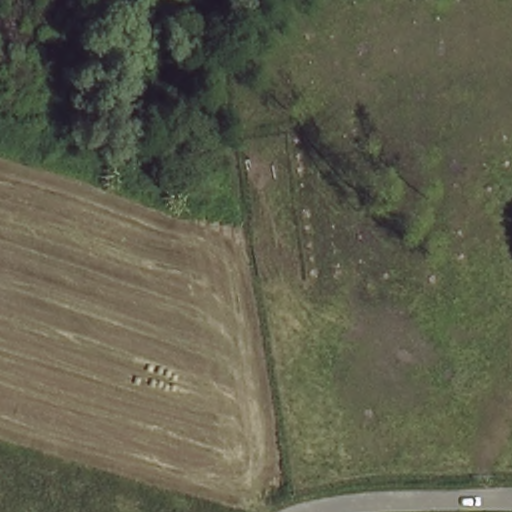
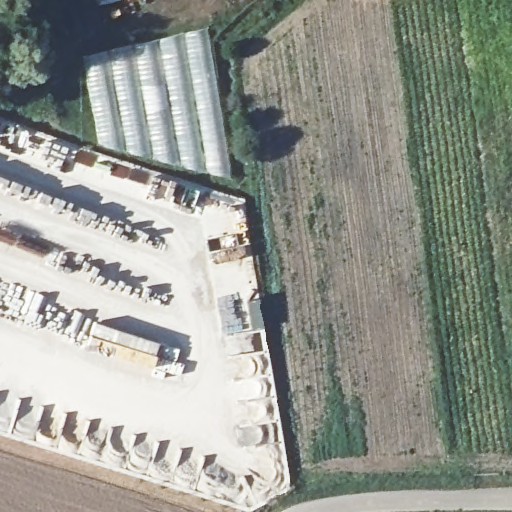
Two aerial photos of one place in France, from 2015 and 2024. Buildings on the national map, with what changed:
new [(207,27),(219,94),(232,176),(230,176),(194,172),(97,148),(80,55),(207,27)]

